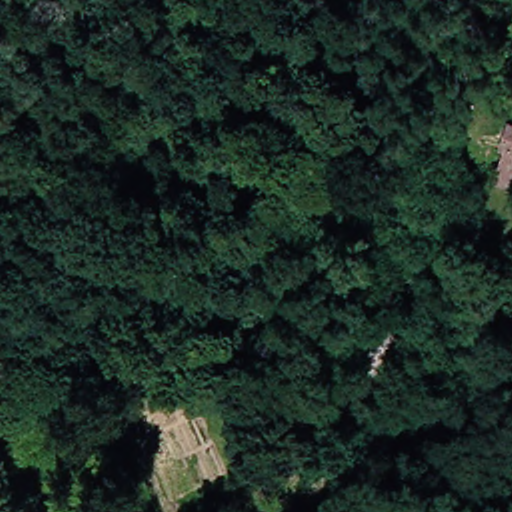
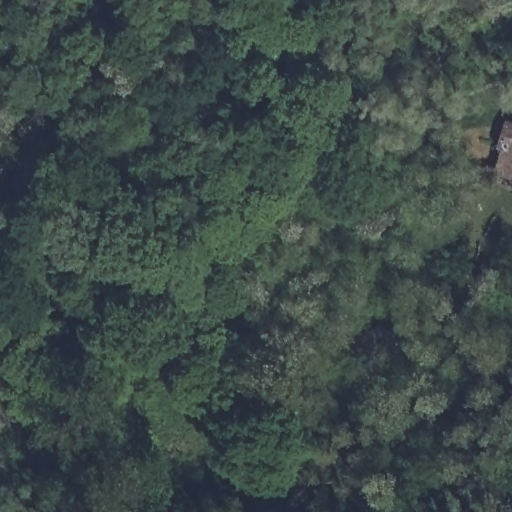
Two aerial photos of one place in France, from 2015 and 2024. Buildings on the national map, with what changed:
unchanged [(507,196),(484,186),(492,159),(466,148),(478,113),(493,119),(492,124),(512,132),(512,182),(511,182),(507,196)]

